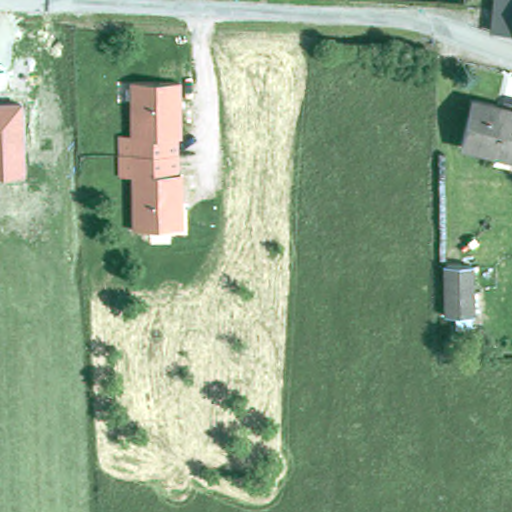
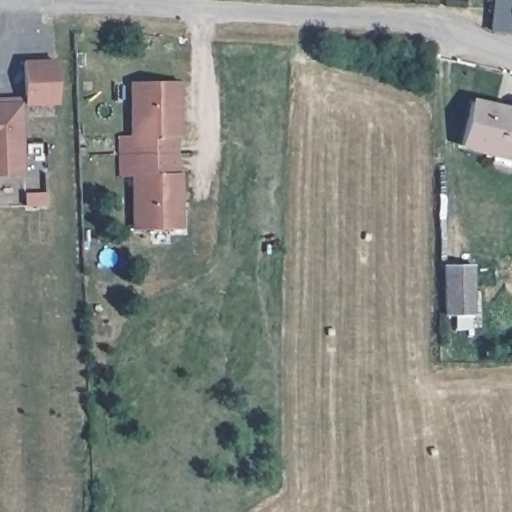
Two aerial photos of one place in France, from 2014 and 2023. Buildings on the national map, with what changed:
unchanged [(494,0),(512,0),(512,29),(493,26),(494,9),(494,0)]
new [(22,60),(58,60),(58,100),(23,101),(22,60)]
unchanged [(179,81),(177,173),(183,172),(184,231),(131,233),(131,177),(115,176),(117,135),(130,136),(133,85),(179,81)]
unchanged [(26,179),(0,180),(0,102),(23,101),(26,179)]
unchanged [(463,145),(474,101),(512,110),(512,158),(463,145)]
unchanged [(473,265),(474,314),(447,315),(447,265),(473,265)]

